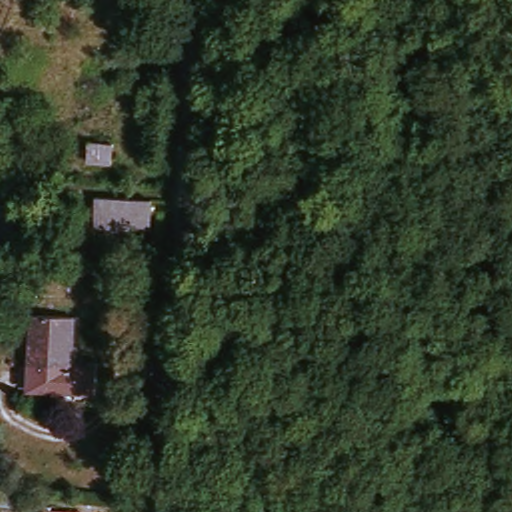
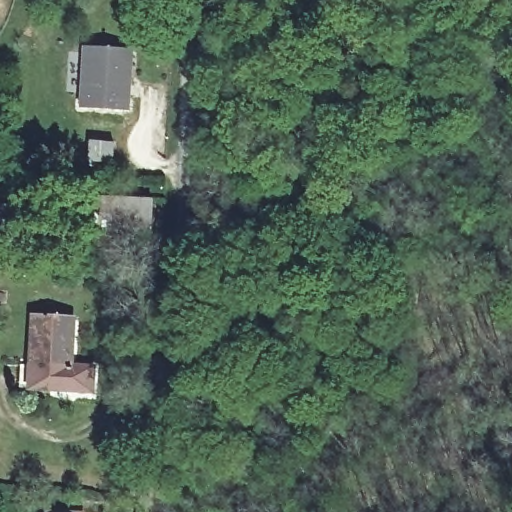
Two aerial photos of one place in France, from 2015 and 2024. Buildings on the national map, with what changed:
new [(134,109),(84,108),(85,93),(69,91),(71,50),(87,50),(87,45),(137,48),(136,85),(135,95),(134,109)]
new [(92,141),(119,143),(117,164),(91,162),(92,141)]
unchanged [(95,198),(148,199),(147,230),(95,229),(95,198)]
unchanged [(36,318),(74,319),(71,371),(97,374),(95,399),(30,394),(19,394),(20,367),(32,368),(36,318)]

